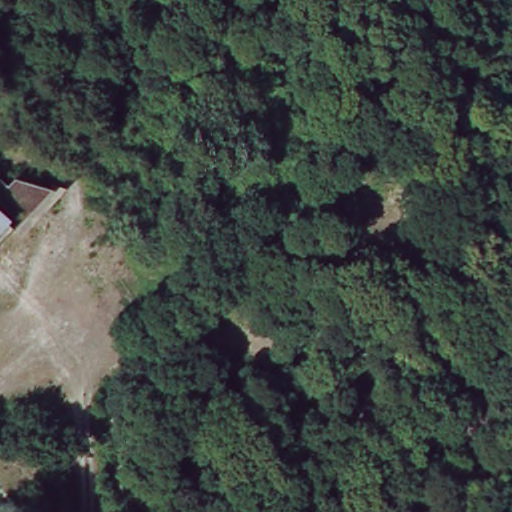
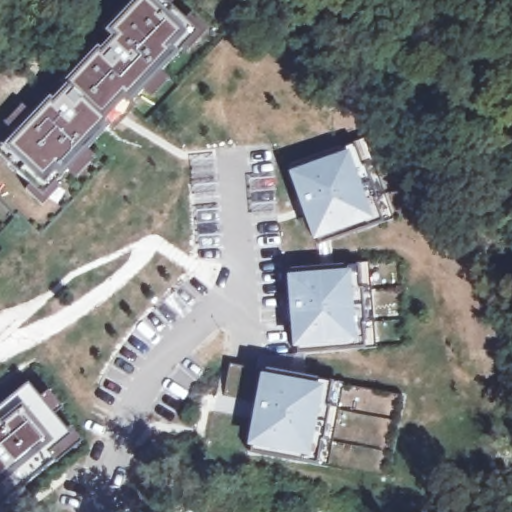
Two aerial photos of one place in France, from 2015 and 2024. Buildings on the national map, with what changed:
new [(43,100),(48,96),(51,100),(63,85),(61,81),(95,47),(98,49),(108,38),(102,32),(100,29),(128,0),(158,0),(192,34),(173,52),(122,105),(119,102),(101,121),(105,125),(56,177),(41,194),(0,157),(0,144),(41,99),(43,100)]
new [(286,173),(293,171),(291,166),(351,145),(359,168),(362,167),(374,199),(370,200),(379,223),(319,244),(317,239),(311,241),(286,173)]
demolished [(15,230),(11,225),(0,213),(0,174),(53,190),(15,230)]
demolished [(0,236),(0,213),(11,225),(0,236)]
new [(291,270),(353,265),(356,290),(358,289),(361,323),(357,323),(359,347),(296,352),(296,349),(289,349),(283,275),(290,275),(291,270)]
new [(329,382),(324,408),(327,409),(321,440),(317,440),(314,463),(249,452),(251,447),(245,446),(258,375),(264,376),(264,371),(329,382)]
new [(68,436),(46,455),(51,460),(0,502),(0,406),(25,386),(68,436)]

